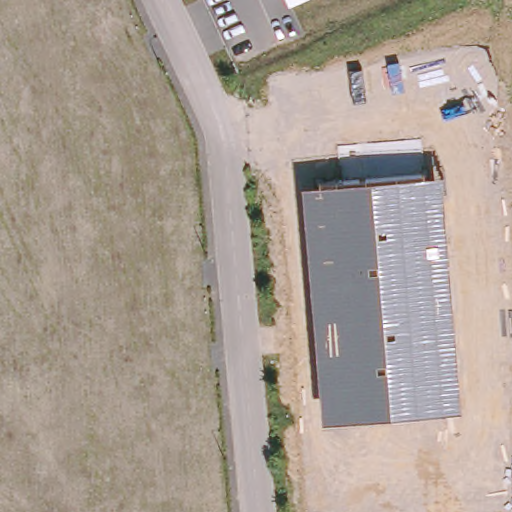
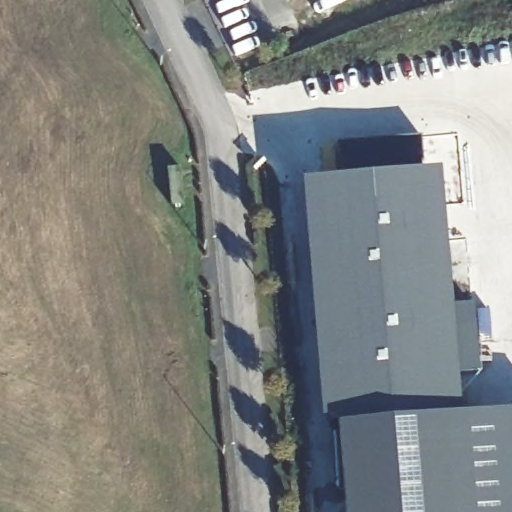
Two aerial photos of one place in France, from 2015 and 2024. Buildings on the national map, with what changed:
unchanged [(288,3),(287,0),(295,0),(288,3)]
unchanged [(443,171),(445,187),(441,187),(460,409),(321,420),(302,185),(443,171)]
new [(512,414),(512,512),(344,512),(336,426),(512,414)]

